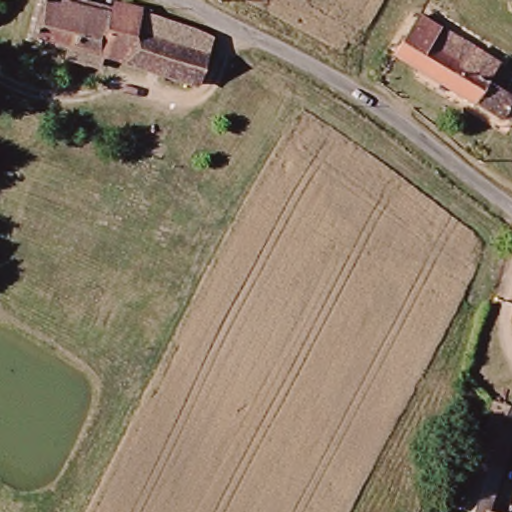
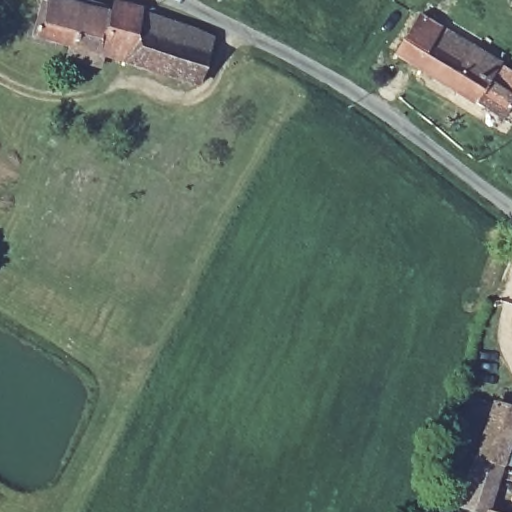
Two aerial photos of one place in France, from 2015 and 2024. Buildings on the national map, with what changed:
unchanged [(200,79),(32,35),(41,0),(81,0),(113,9),(115,0),(123,0),(144,5),(142,16),(212,38),(200,79)]
unchanged [(493,77),(512,89),(512,107),(506,117),(401,50),(425,13),(503,62),(493,77)]
unchanged [(489,400),(512,408),(512,451),(508,461),(474,450),(489,400)]
unchanged [(474,450),(508,461),(493,512),(481,512),(457,504),(474,450)]

